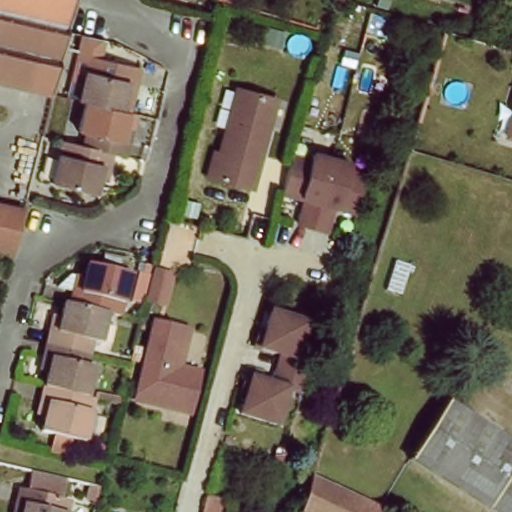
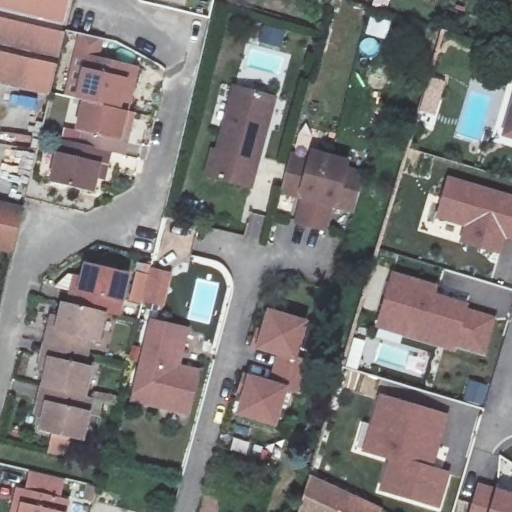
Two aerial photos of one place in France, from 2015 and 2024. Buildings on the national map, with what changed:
unchanged [(47,86),(0,76),(0,0),(67,0),(61,26),(47,86)]
unchanged [(87,104),(81,102),(92,60),(142,72),(138,87),(131,85),(124,113),(87,104)]
unchanged [(281,94),(257,188),(206,174),(215,144),(220,145),(236,81),(281,94)]
unchanged [(502,134),(512,87),(512,136),(502,134)]
unchanged [(124,113),(132,115),(122,156),(117,154),(84,146),(88,135),(80,133),(87,104),(124,113)]
unchanged [(117,154),(114,169),(107,166),(100,194),(58,183),(68,142),(84,146),(117,154)]
unchanged [(293,151),(313,158),(315,151),(355,162),(353,168),(368,173),(355,216),(338,212),(331,235),(295,225),(303,202),(281,195),(293,151)]
new [(512,196),(512,249),(505,247),(503,257),(461,245),(465,230),(435,220),(448,177),(512,196)]
unchanged [(0,204),(19,208),(14,228),(9,249),(0,246),(0,204)]
unchanged [(74,290),(81,291),(88,263),(129,273),(119,315),(106,312),(70,304),(74,290)]
new [(440,287),(437,296),(470,305),(469,310),(497,319),(487,359),(457,350),(455,354),(375,329),(392,273),(440,287)]
unchanged [(99,343),(91,341),(88,351),(53,343),(63,302),(70,304),(106,312),(99,343)]
unchanged [(257,322),(262,323),(268,303),(309,314),(297,357),(255,346),(250,345),(257,322)]
unchanged [(197,379),(188,418),(127,404),(146,319),(188,328),(179,364),(199,369),(197,379)]
unchanged [(53,343),(88,351),(85,365),(93,367),(87,394),(43,383),(53,343)]
unchanged [(278,425),(237,414),(244,391),(238,390),(244,368),(250,370),(290,381),(278,425)]
unchanged [(87,394),(94,396),(83,440),(40,429),(48,399),(39,396),(43,383),(87,394)]
new [(450,417),(436,469),(452,475),(442,512),(436,512),(378,495),(387,463),(361,455),(379,396),(450,417)]
demolished [(442,404),(512,448),(512,462),(500,480),(512,488),(512,512),(490,512),(408,459),(442,404)]
unchanged [(23,501),(16,499),(19,486),(27,487),(32,468),(74,479),(66,512),(20,512),(23,501)]
unchanged [(381,512),(299,512),(310,476),(382,510),(381,512)]
new [(512,494),(512,512),(471,512),(479,485),(512,494)]
unchanged [(225,496),(220,512),(199,512),(205,491),(225,496)]

